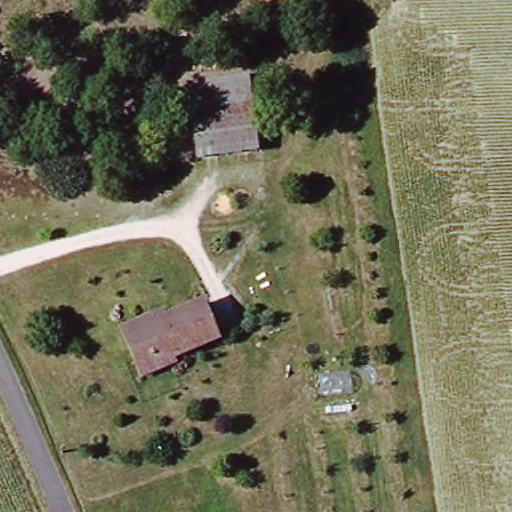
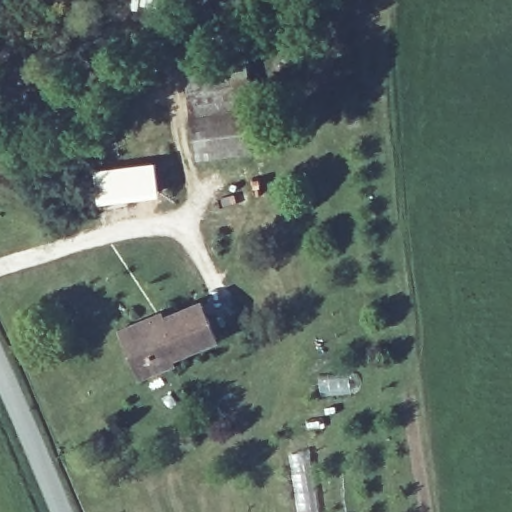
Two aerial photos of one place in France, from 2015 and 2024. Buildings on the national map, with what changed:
unchanged [(204,116),(203,83),(266,81),(266,115),(204,116)]
unchanged [(266,156),(205,160),(204,116),(266,115),(266,156)]
new [(98,202),(94,170),(155,162),(159,195),(98,202)]
unchanged [(154,326),(153,319),(159,316),(164,322),(204,306),(219,342),(160,367),(156,356),(137,363),(126,331),(144,322),(149,330),(154,326)]

